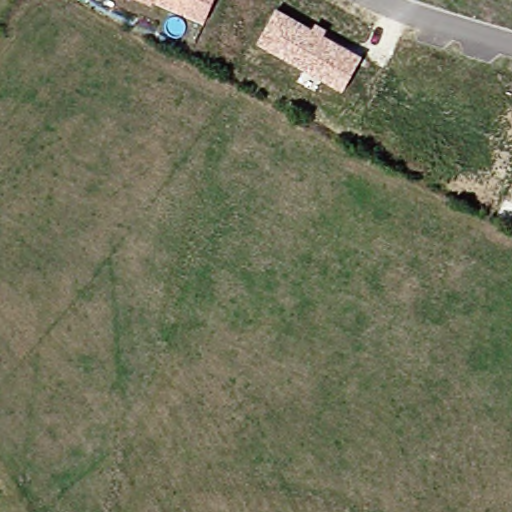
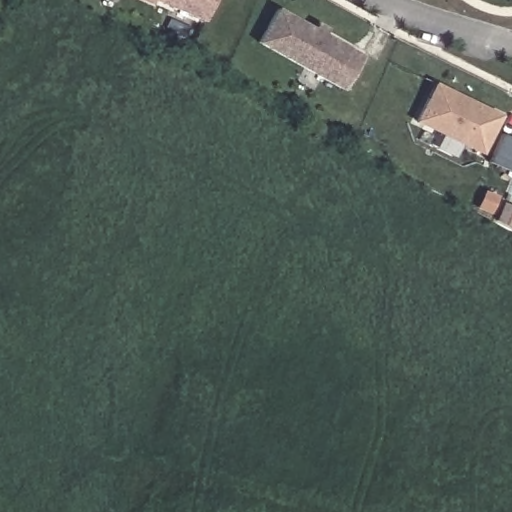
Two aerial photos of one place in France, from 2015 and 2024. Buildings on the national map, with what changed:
unchanged [(151,5),(138,0),(154,0),(151,5)]
unchanged [(156,0),(214,0),(205,22),(156,0)]
unchanged [(258,44),(278,10),(313,29),(317,22),(327,30),(324,35),(362,57),(342,92),(258,44)]
new [(482,155),(414,122),(433,82),(501,115),(482,155)]

